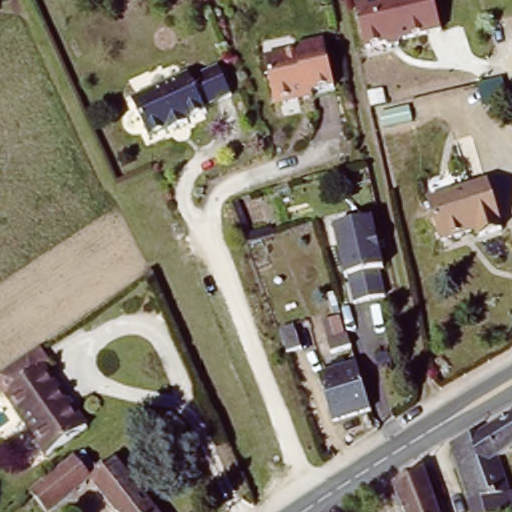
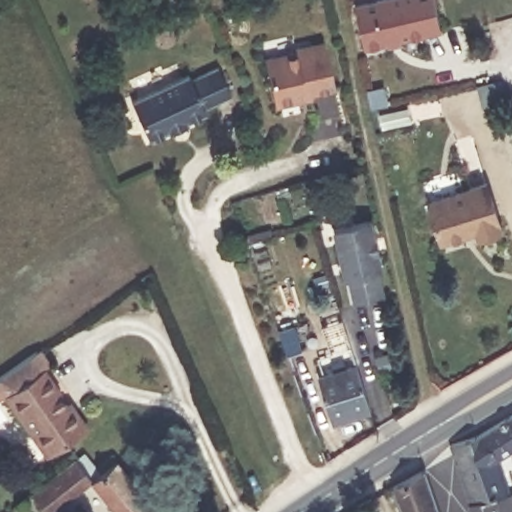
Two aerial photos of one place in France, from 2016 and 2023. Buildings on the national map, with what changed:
unchanged [(350,6),(381,0),(429,0),(436,35),(360,55),(350,6)]
unchanged [(303,100),(303,104),(282,109),(271,66),(304,57),(303,54),(327,48),(338,92),(303,100)]
unchanged [(206,115),(207,120),(188,127),(189,129),(167,137),(167,136),(147,143),(132,105),(192,82),(192,84),(220,74),(232,105),(206,115)]
unchanged [(463,189),(484,182),(499,227),(479,234),(463,189)]
unchanged [(471,230),(439,241),(425,202),(463,189),(479,234),(474,236),(471,230)]
unchanged [(357,308),(351,282),(347,282),(337,235),(373,227),(384,273),(381,275),(387,301),(357,308)]
unchanged [(301,351),(287,356),(283,343),(279,332),(292,327),(301,351)]
unchanged [(327,355),(347,348),(351,360),(331,366),(327,355)]
unchanged [(47,366),(39,372),(70,413),(72,412),(85,430),(46,457),(3,396),(0,398),(0,374),(35,350),(47,366)]
unchanged [(317,388),(332,383),(330,377),(342,372),(345,378),(356,375),(371,422),(333,435),(317,388)]
unchanged [(472,437),(512,413),(512,448),(495,460),(512,506),(512,512),(467,512),(465,505),(447,447),(472,437)]
unchanged [(75,460),(92,482),(52,512),(44,512),(31,495),(75,460)]
unchanged [(153,512),(115,512),(94,483),(92,482),(117,464),(153,512)]
unchanged [(420,476),(432,512),(399,512),(391,492),(420,476)]

